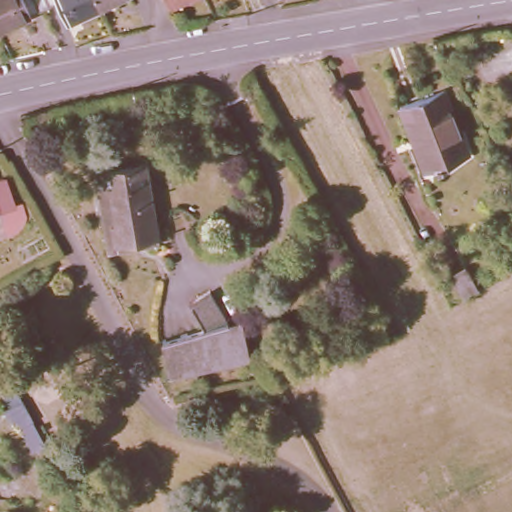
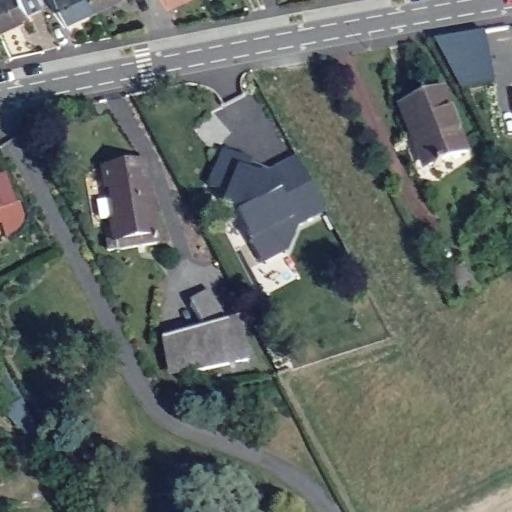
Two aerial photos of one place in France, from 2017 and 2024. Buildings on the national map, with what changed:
unchanged [(0,0),(39,0),(30,4),(30,5),(0,19),(0,0)]
unchanged [(102,1),(70,15),(63,0),(102,0),(102,1)]
unchanged [(102,1),(102,0),(104,0),(102,1)]
new [(436,40),(485,32),(494,84),(461,89),(436,40)]
unchanged [(443,86),(470,149),(434,165),(422,138),(416,139),(401,103),(443,86)]
new [(324,211),(297,229),(287,253),(263,269),(222,198),(207,188),(221,151),(268,171),(294,159),(310,186),(324,211)]
unchanged [(115,239),(111,216),(117,214),(112,181),(105,182),(102,165),(143,162),(154,234),(115,239)]
unchanged [(0,205),(0,179),(5,177),(12,202),(0,205)]
unchanged [(464,264),(478,289),(462,297),(448,271),(464,264)]
unchanged [(160,336),(201,322),(185,291),(212,288),(247,353),(178,373),(160,336)]

